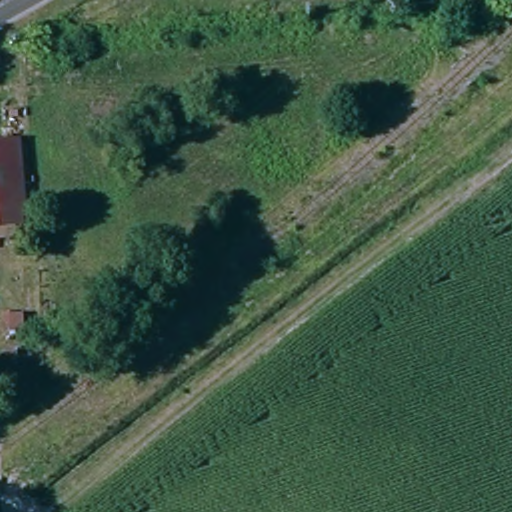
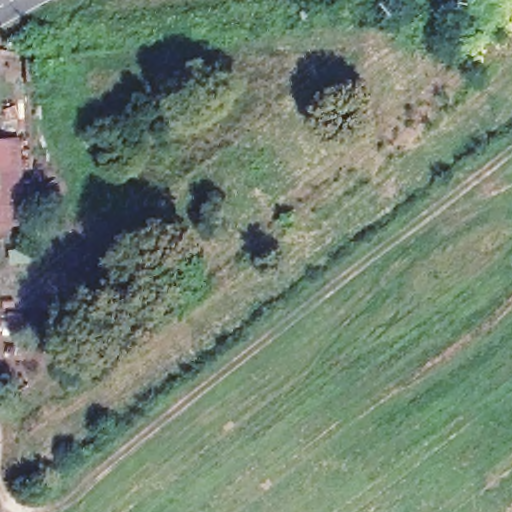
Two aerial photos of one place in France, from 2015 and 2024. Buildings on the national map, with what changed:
unchanged [(17,205),(0,204),(0,141),(15,141),(17,205)]
unchanged [(18,227),(0,226),(0,204),(17,205),(18,227)]

